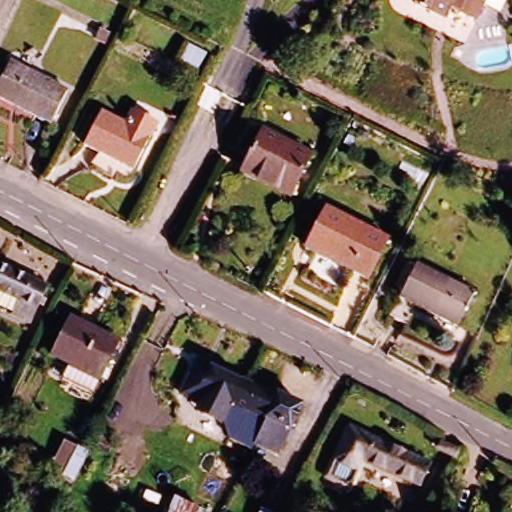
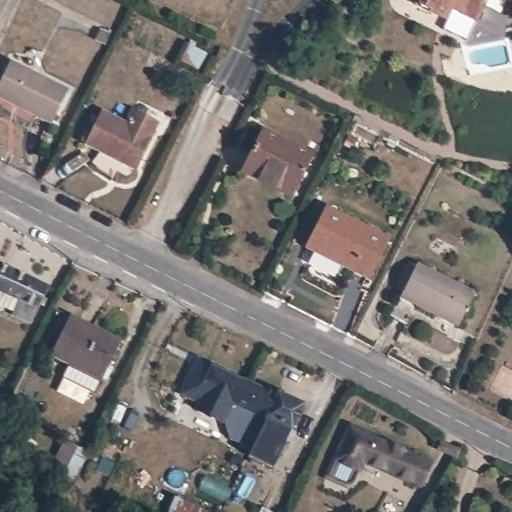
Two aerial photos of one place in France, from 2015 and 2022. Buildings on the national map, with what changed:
unchanged [(448,9),(443,16),(413,1),(414,0),(485,0),(474,22),(448,9)]
unchanged [(69,94),(54,128),(0,103),(0,78),(6,65),(69,94)]
unchanged [(123,132),(131,115),(158,127),(132,176),(81,154),(97,120),(123,132)]
unchanged [(314,157),(294,195),(245,172),(264,133),(314,157)]
unchanged [(392,243),(371,280),(312,249),(331,213),(392,243)]
unchanged [(45,285),(28,321),(15,316),(18,305),(0,297),(0,265),(45,285)]
unchanged [(477,294),(458,329),(418,309),(405,327),(392,320),(419,268),(477,294)]
unchanged [(120,345),(102,384),(53,361),(71,321),(120,345)]
unchanged [(244,376),(254,380),(239,408),(201,391),(198,398),(181,392),(196,361),(205,364),(208,359),(244,376)]
unchanged [(263,446),(269,435),(254,429),(260,418),(239,408),(254,380),(285,395),(289,387),(300,392),(296,401),(306,407),(294,434),(291,432),(281,454),(263,446)]
unchanged [(360,466),(363,467),(357,479),(330,465),(351,426),(374,438),(360,466)]
unchanged [(360,466),(374,438),(421,461),(408,488),(363,467),(360,466)]
unchanged [(132,512),(144,485),(200,512),(132,512)]
unchanged [(264,502),(281,508),(279,512),(260,512),(264,502)]

